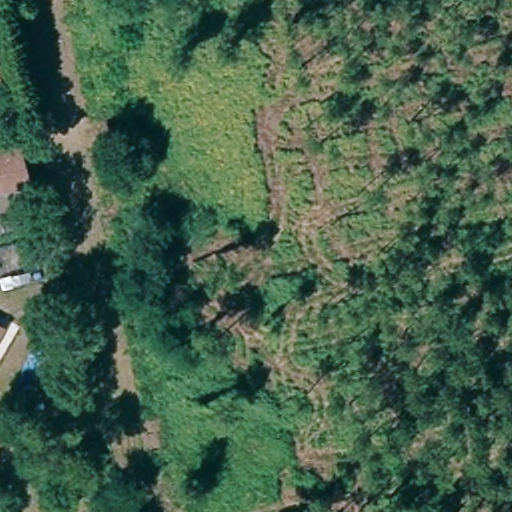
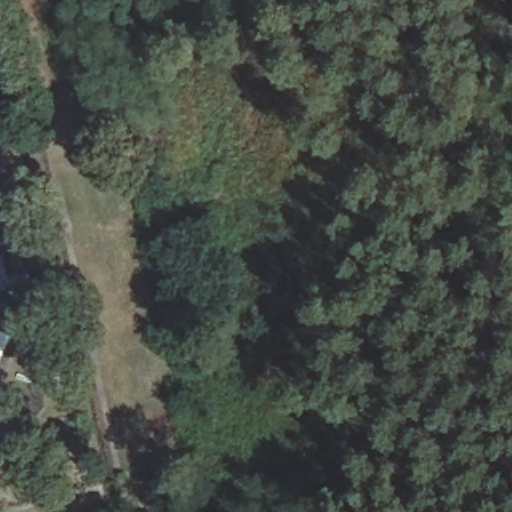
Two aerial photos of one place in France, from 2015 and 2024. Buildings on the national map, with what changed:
unchanged [(27,182),(0,190),(0,149),(18,145),(27,182)]

